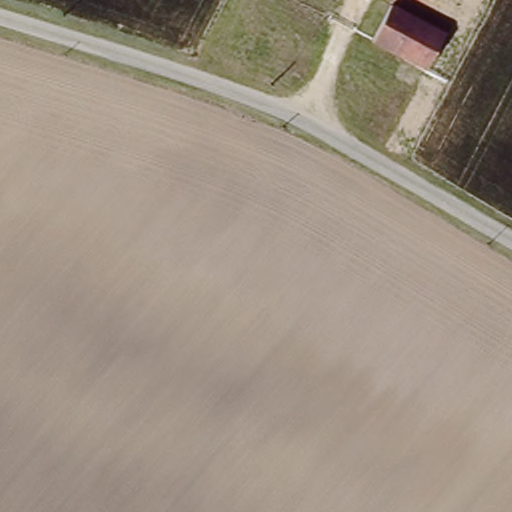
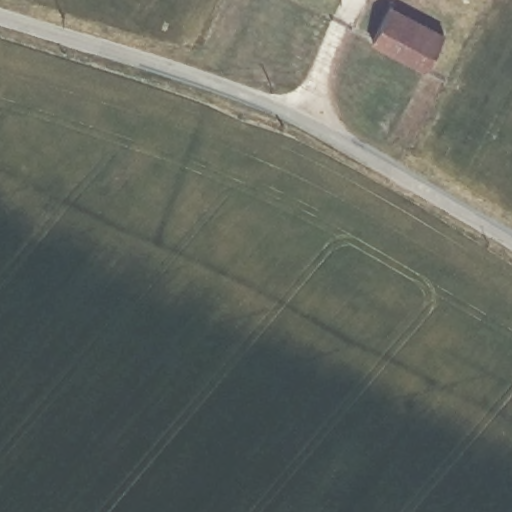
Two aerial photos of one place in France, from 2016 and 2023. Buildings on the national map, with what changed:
unchanged [(427,68),(373,40),(392,5),(445,35),(427,68)]

